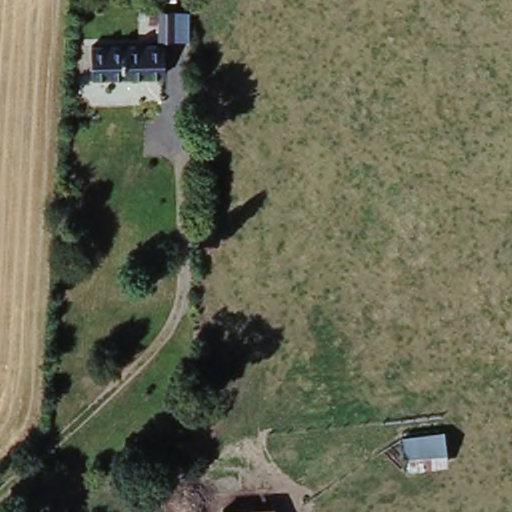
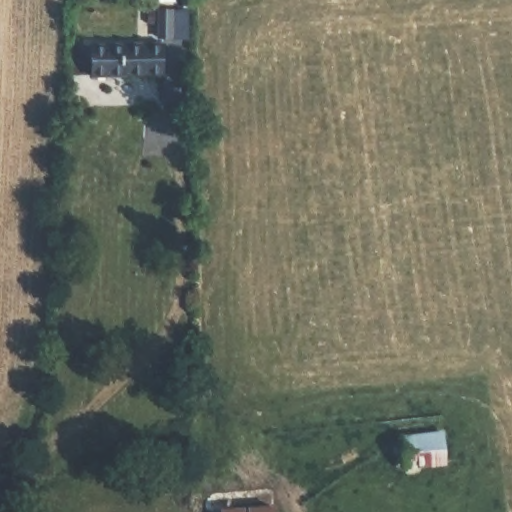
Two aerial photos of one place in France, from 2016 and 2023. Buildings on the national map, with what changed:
unchanged [(101,49),(172,46),(173,77),(101,80),(101,49)]
unchanged [(384,437),(466,433),(468,463),(385,467),(384,437)]
unchanged [(275,512),(232,512),(275,510),(275,512)]

